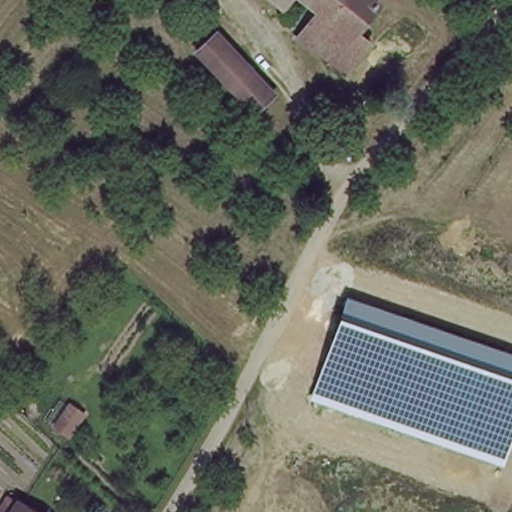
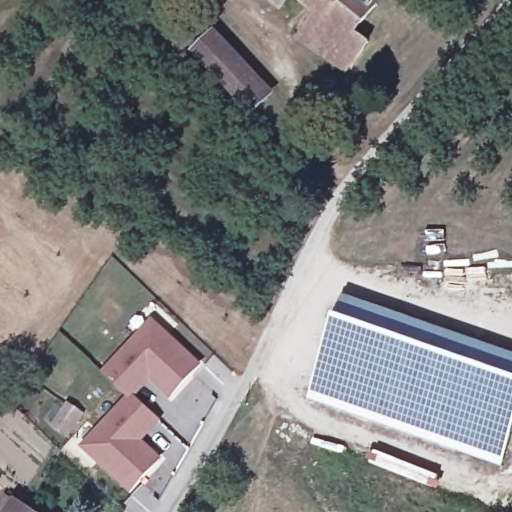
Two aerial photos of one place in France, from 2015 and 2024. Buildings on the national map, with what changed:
unchanged [(311,15),(293,1),(285,15),(266,0),(369,0),(376,6),(358,30),(371,44),(342,75),(292,39),(311,15)]
unchanged [(248,120),(190,54),(212,34),(271,101),(248,120)]
unchanged [(512,437),(502,463),(311,397),(346,295),(512,354),(512,437)]
new [(130,433),(155,457),(127,487),(81,443),(127,395),(103,371),(151,323),(196,365),(168,395),(142,371),(148,377),(142,382),(130,395),(155,420),(141,433),(136,439),(130,433)]
new [(66,403),(81,413),(67,433),(52,423),(66,403)]
unchanged [(13,505),(24,512),(10,512),(13,505)]

